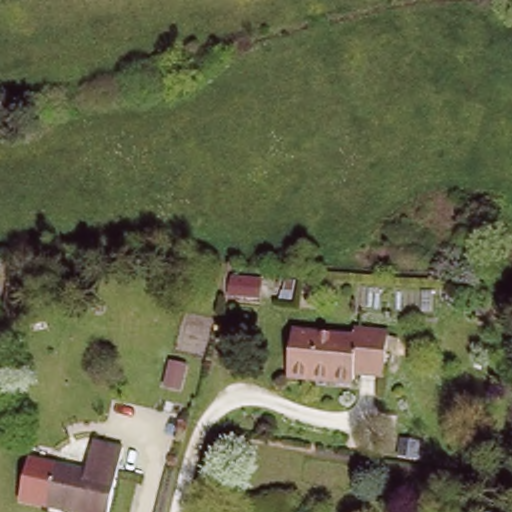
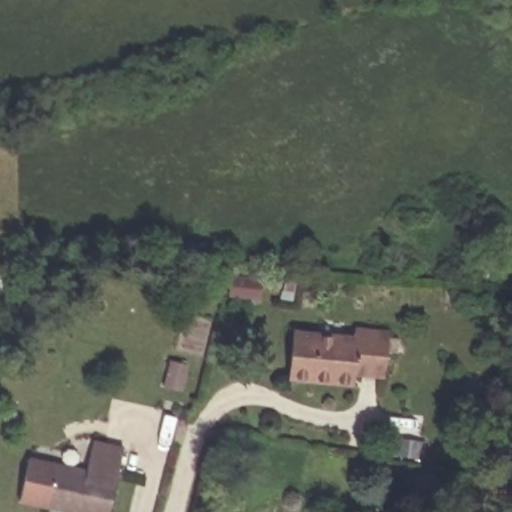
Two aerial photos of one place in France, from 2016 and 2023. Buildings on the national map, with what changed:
unchanged [(291,322),(354,327),(356,318),(389,322),(384,367),(351,363),(349,376),(285,367),(291,322)]
unchanged [(128,445),(112,512),(52,498),(60,461),(87,467),(93,437),(128,445)]
unchanged [(112,512),(76,512),(18,501),(29,455),(60,461),(52,498),(112,512)]

